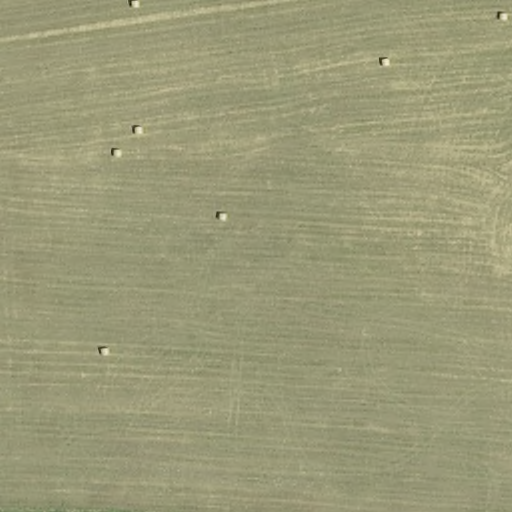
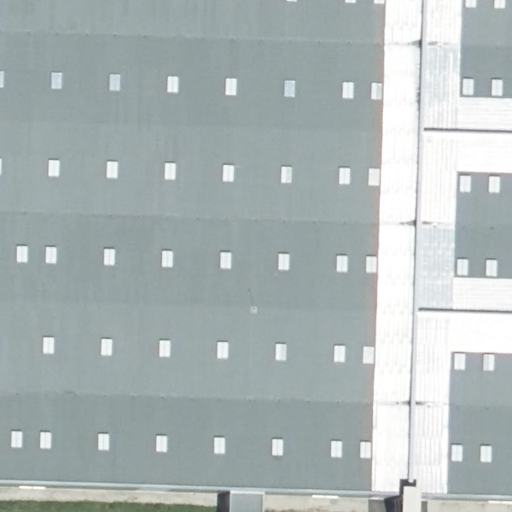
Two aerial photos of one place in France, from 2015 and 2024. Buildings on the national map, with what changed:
new [(0,487),(0,0),(512,0),(512,502),(0,487)]

